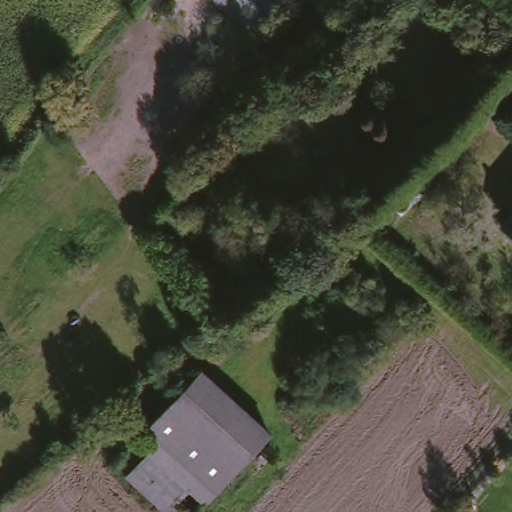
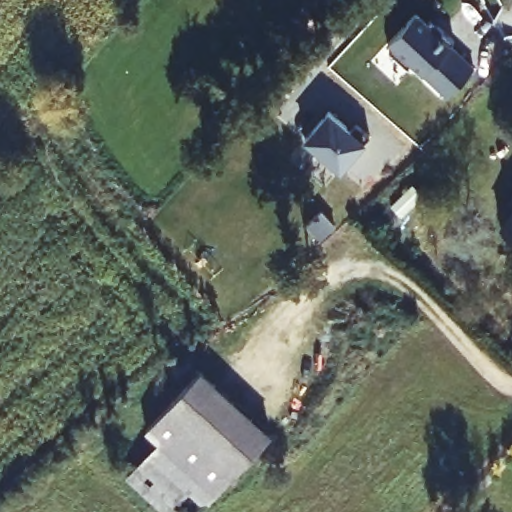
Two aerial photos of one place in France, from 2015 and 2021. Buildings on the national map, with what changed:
new [(411,61),(407,65),(388,48),(392,45),(388,41),(414,12),(425,21),(430,19),(437,25),(439,25),(455,40),(450,45),(473,67),(447,95),(411,61)]
new [(329,108),(366,140),(341,170),(303,139),(329,108)]
unchanged [(412,186),(435,168),(445,180),(422,199),(412,186)]
unchanged [(512,209),(512,241),(497,228),(512,209)]
unchanged [(208,512),(165,512),(125,484),(154,442),(141,433),(186,370),(266,430),(208,512)]

